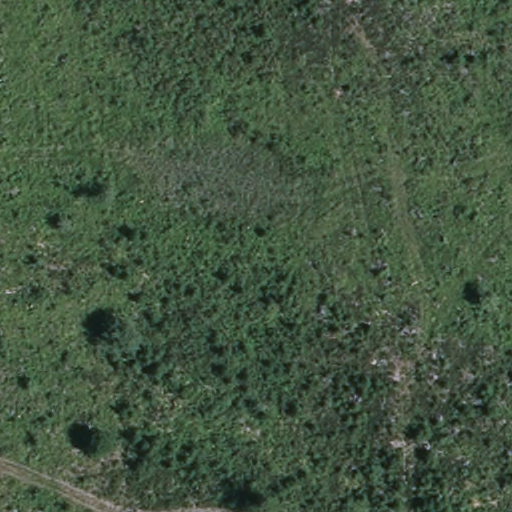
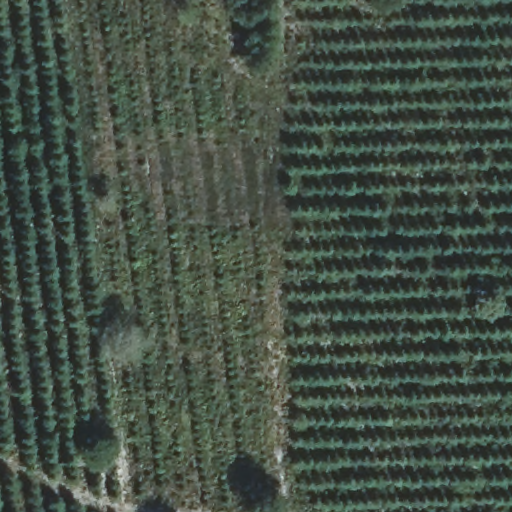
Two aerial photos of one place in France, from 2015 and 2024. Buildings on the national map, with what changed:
[]

